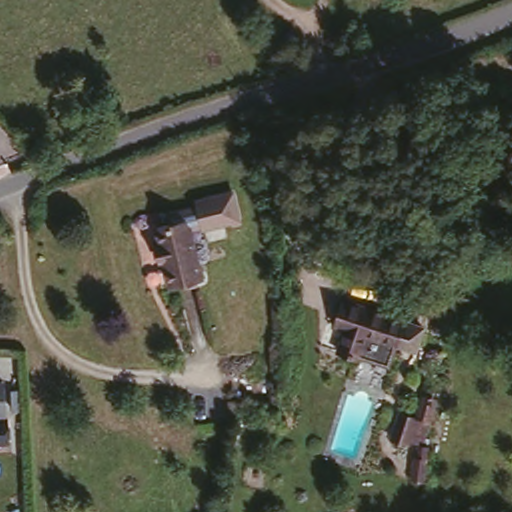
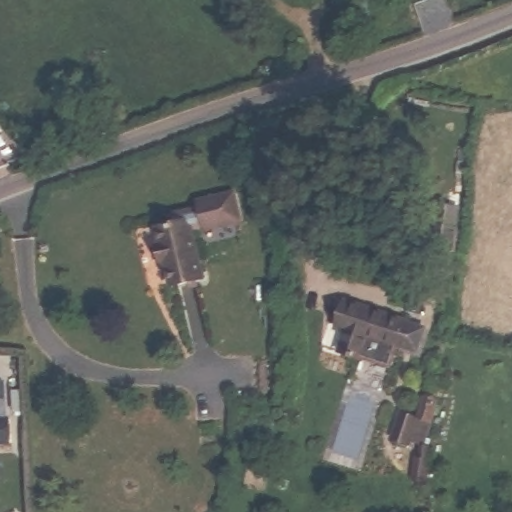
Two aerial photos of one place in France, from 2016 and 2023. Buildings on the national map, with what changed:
unchanged [(245,222),(227,226),(227,224),(196,230),(193,219),(166,225),(162,209),(192,202),(191,198),(235,188),(245,222)]
unchanged [(193,219),(208,279),(175,286),(169,261),(164,262),(161,247),(165,246),(161,226),(193,219)]
unchanged [(456,228),(452,256),(428,253),(433,225),(456,228)]
unchanged [(426,329),(417,356),(388,346),(382,368),(331,351),(338,328),(329,324),(340,299),(426,329)]
unchanged [(7,381),(8,415),(0,416),(0,382),(7,381)]
unchanged [(431,401),(422,434),(414,432),(411,442),(404,440),(403,443),(386,437),(395,410),(413,415),(419,397),(431,401)]
unchanged [(10,418),(11,443),(0,443),(0,418),(10,418)]

